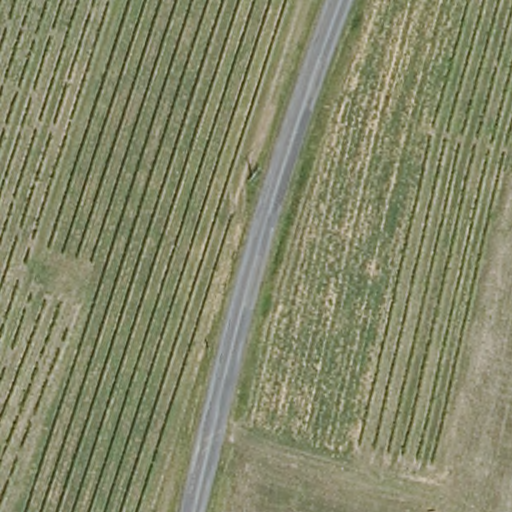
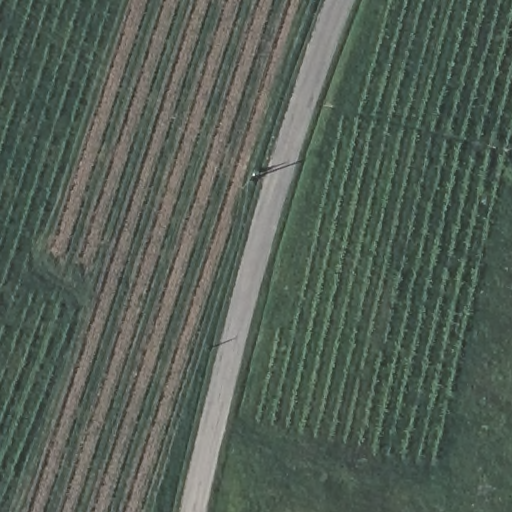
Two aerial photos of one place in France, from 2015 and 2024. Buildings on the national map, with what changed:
[]

